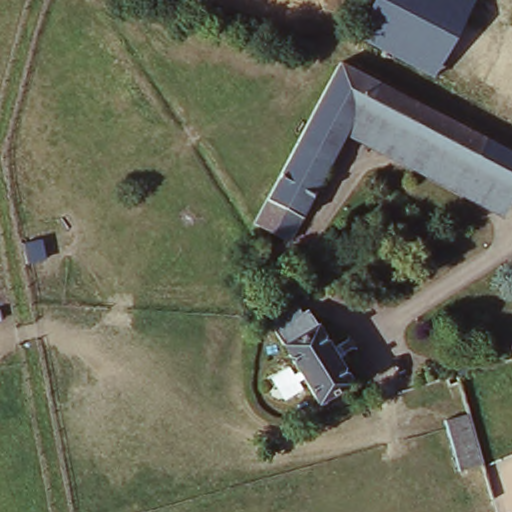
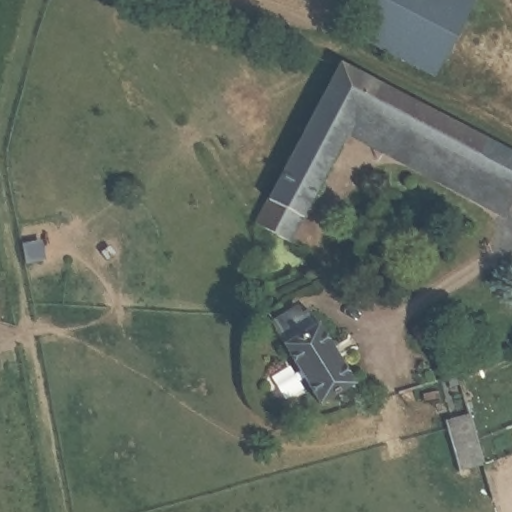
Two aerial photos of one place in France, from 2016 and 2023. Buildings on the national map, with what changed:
unchanged [(446,83),(355,36),(375,0),(480,0),(488,5),(446,83)]
unchanged [(358,125),(293,252),(258,231),(340,68),(455,126),(512,154),(512,202),(358,125)]
unchanged [(283,292),(289,302),(299,296),(358,387),(326,408),(259,306),(283,292)]
unchanged [(480,362),(482,372),(453,381),(451,372),(480,362)]
unchanged [(444,383),(453,381),(454,387),(446,389),(444,383)]
unchanged [(445,421),(468,416),(485,468),(462,474),(460,466),(445,421)]

